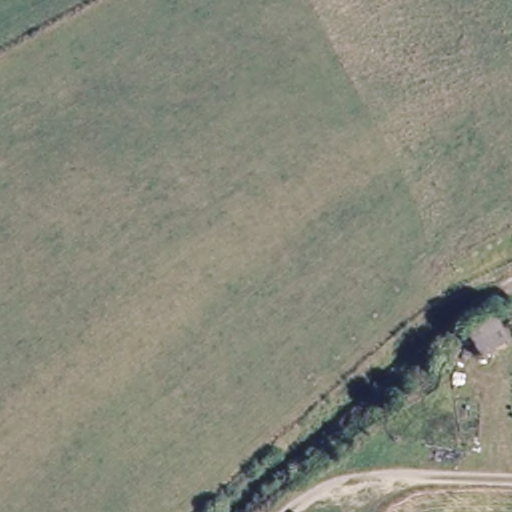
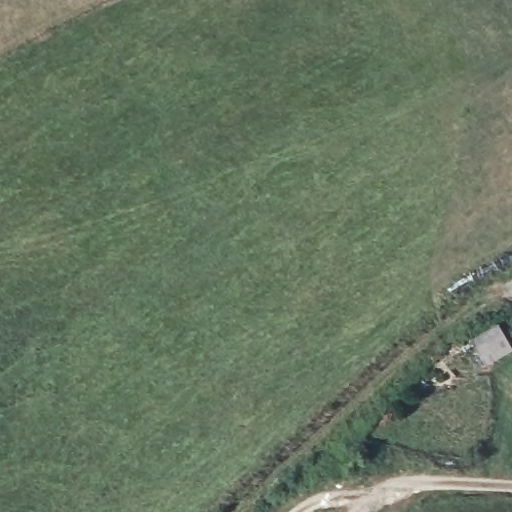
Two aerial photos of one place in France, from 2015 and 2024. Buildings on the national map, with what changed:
unchanged [(477,339),(503,324),(512,339),(512,355),(492,367),(477,339)]

